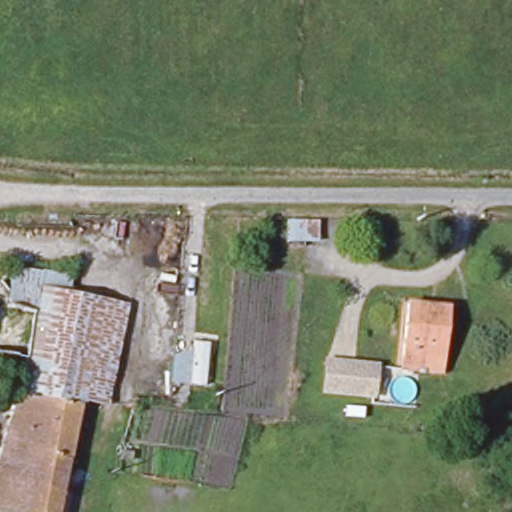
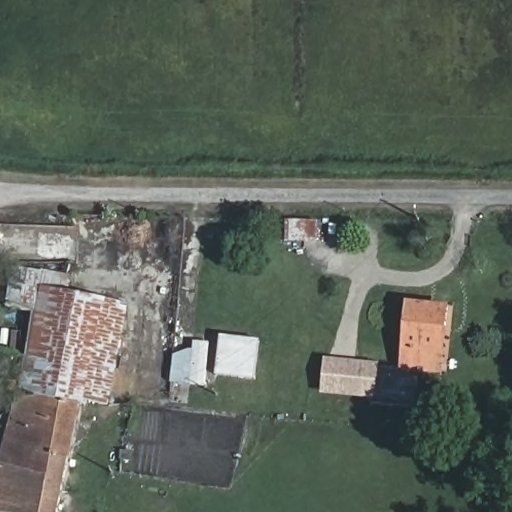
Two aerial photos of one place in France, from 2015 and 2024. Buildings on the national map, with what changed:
unchanged [(284,240),(283,216),(318,217),(318,242),(284,240)]
unchanged [(127,306),(107,410),(80,405),(56,512),(0,512),(0,439),(19,360),(0,358),(0,308),(4,308),(11,267),(70,277),(67,293),(127,306)]
unchanged [(447,307),(440,375),(400,373),(402,303),(447,307)]
new [(260,340),(255,380),(217,375),(221,336),(260,340)]
unchanged [(210,340),(207,387),(188,386),(192,338),(210,340)]
unchanged [(378,362),(373,400),(321,395),(325,356),(378,362)]

